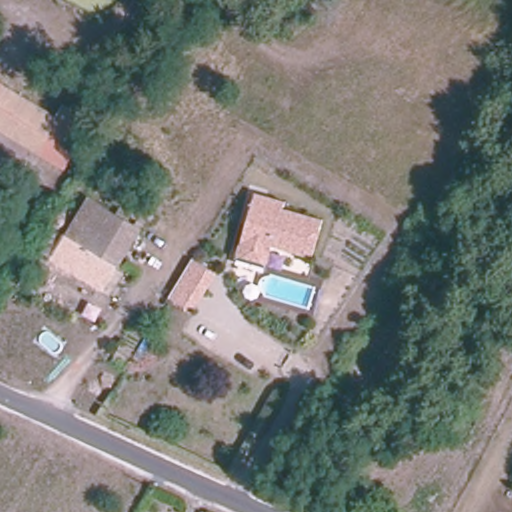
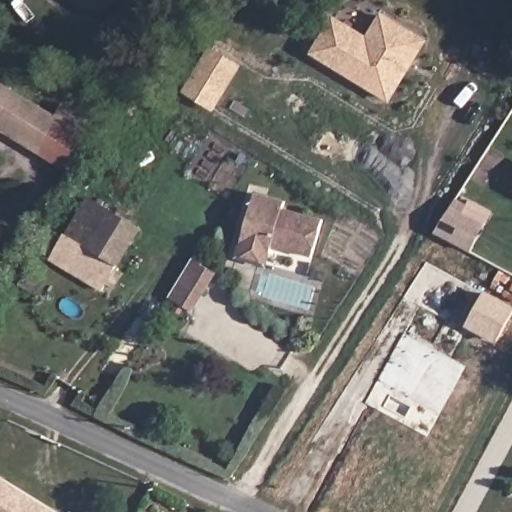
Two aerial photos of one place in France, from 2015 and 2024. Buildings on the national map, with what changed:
new [(334,17),(366,36),(381,13),(428,41),(390,104),(311,55),(334,17)]
new [(212,47),(242,66),(214,113),(184,94),(212,47)]
unchanged [(87,131),(64,172),(0,134),(0,81),(87,131)]
unchanged [(83,190),(150,232),(115,293),(61,260),(74,238),(60,230),(83,190)]
unchanged [(254,263),(236,257),(239,246),(253,201),(256,194),(266,197),(283,202),(281,210),(324,223),(312,261),(272,248),(270,256),(266,267),(254,263)]
new [(432,234),(455,197),(468,205),(464,213),(484,224),(468,253),(432,234)]
unchanged [(213,272),(216,274),(205,292),(193,312),(170,298),(193,260),(213,272)]
new [(512,319),(497,345),(465,328),(485,291),(512,306),(512,319)]
new [(56,512),(0,512),(0,477),(56,512)]

